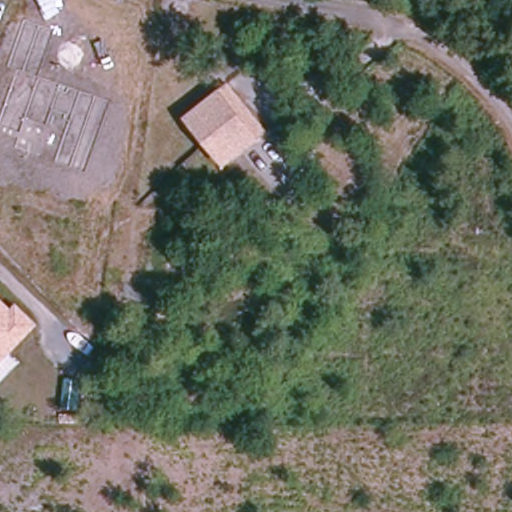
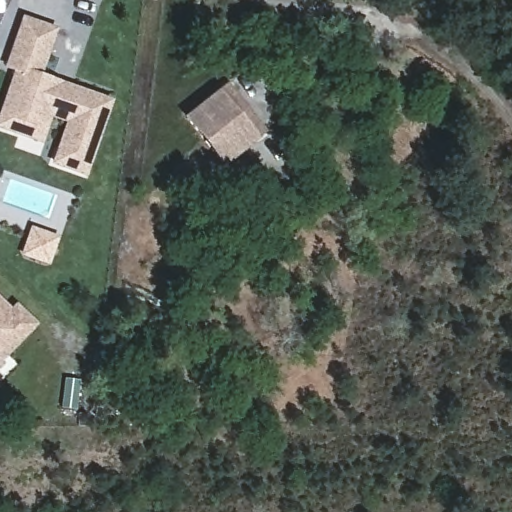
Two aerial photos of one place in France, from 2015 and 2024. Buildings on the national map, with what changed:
new [(11,70),(2,68),(21,15),(55,28),(41,74),(61,81),(112,97),(85,175),(50,163),(63,121),(49,117),(40,142),(0,129),(0,104),(11,70)]
unchanged [(217,89),(224,83),(266,132),(257,139),(221,168),(182,119),(217,89)]
new [(29,225),(58,236),(48,264),(19,254),(29,225)]
unchanged [(10,354),(18,363),(0,382),(0,295),(11,306),(16,303),(38,326),(10,354)]

